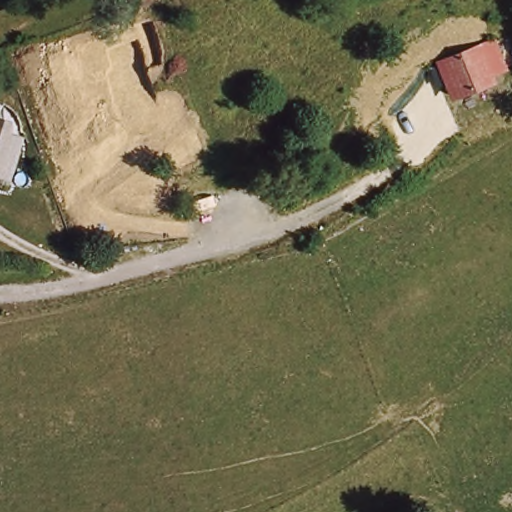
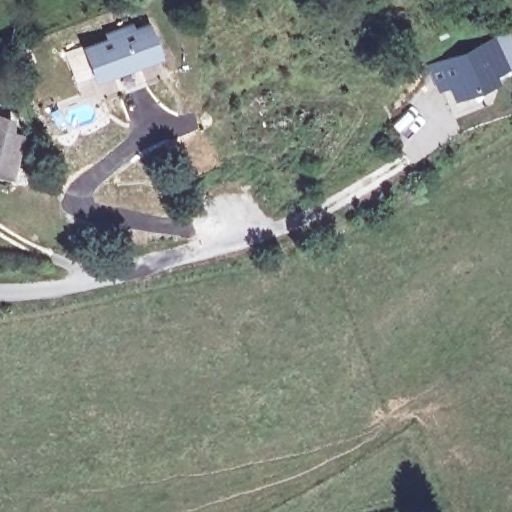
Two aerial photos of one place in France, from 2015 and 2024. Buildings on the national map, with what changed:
new [(104,36),(102,32),(117,27),(118,30),(148,21),(160,57),(92,81),(80,46),(104,36)]
unchanged [(494,82),(497,92),(463,107),(450,73),(498,52),(507,77),(494,82)]
unchanged [(0,129),(1,121),(11,122),(9,135),(19,136),(13,173),(11,186),(0,184),(0,129)]

